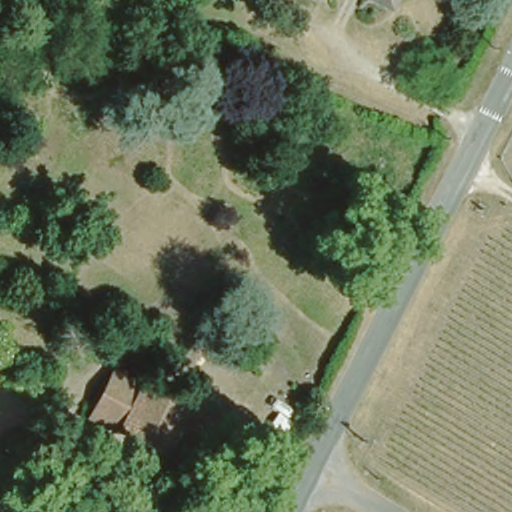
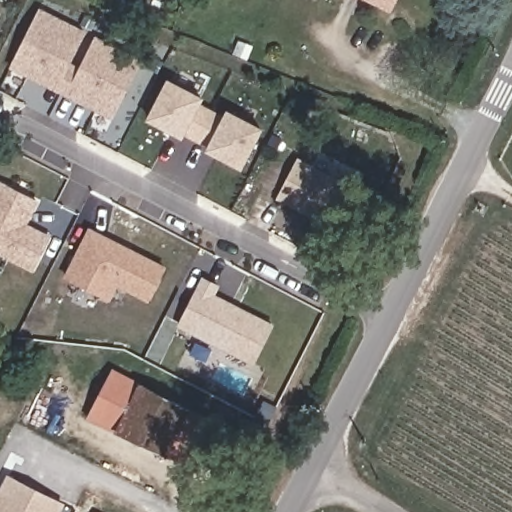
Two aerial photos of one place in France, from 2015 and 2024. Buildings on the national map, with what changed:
new [(73,69),(61,93),(9,68),(38,11),(84,34),(67,66),(73,69)]
new [(112,119),(61,93),(73,69),(79,72),(95,40),(141,63),(112,119)]
new [(171,133),(147,120),(167,83),(200,100),(196,107),(210,113),(195,141),(182,134),(180,138),(171,133)]
new [(208,148),(195,141),(210,113),(223,120),(226,114),(259,131),(239,169),(216,157),(206,152),(208,148)]
new [(331,229),(276,199),(296,162),(351,191),(331,229)]
new [(47,238),(31,270),(0,254),(0,184),(35,202),(23,225),(32,230),(47,238)]
new [(145,301),(114,285),(106,300),(64,278),(88,231),(107,241),(114,245),(162,269),(145,301)]
new [(269,326),(250,363),(177,326),(200,279),(215,287),(210,296),(269,326)]
unchanged [(179,402),(157,449),(86,422),(111,373),(179,402)]
new [(0,512),(0,486),(9,470),(62,498),(55,512),(0,512)]
new [(123,512),(93,512),(100,500),(123,512)]

